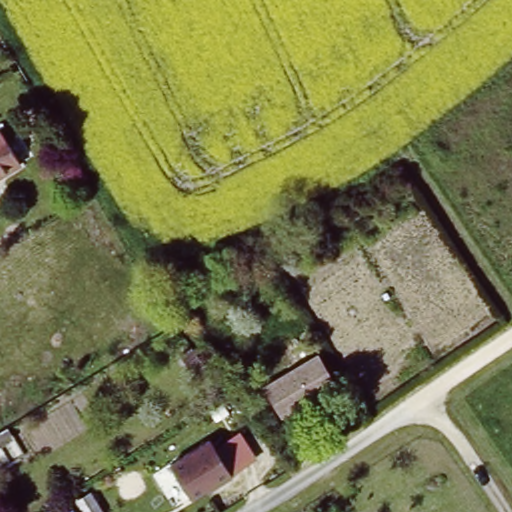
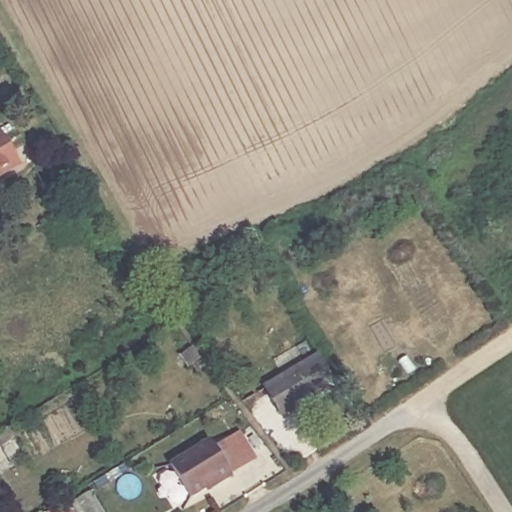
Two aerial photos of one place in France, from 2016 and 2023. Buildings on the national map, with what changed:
unchanged [(2,128),(22,161),(0,175),(0,129),(2,128)]
unchanged [(339,380),(289,415),(270,388),(321,354),(339,380)]
unchanged [(214,438),(233,470),(194,491),(177,458),(214,438)]

